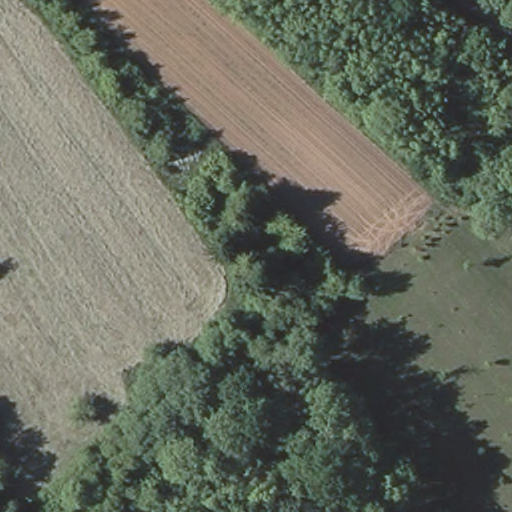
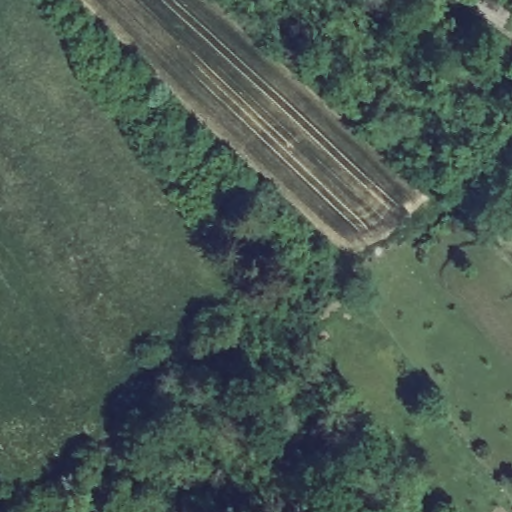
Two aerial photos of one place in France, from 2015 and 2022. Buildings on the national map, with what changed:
unchanged [(307,306),(287,321),(271,298),(291,284),(307,306)]

